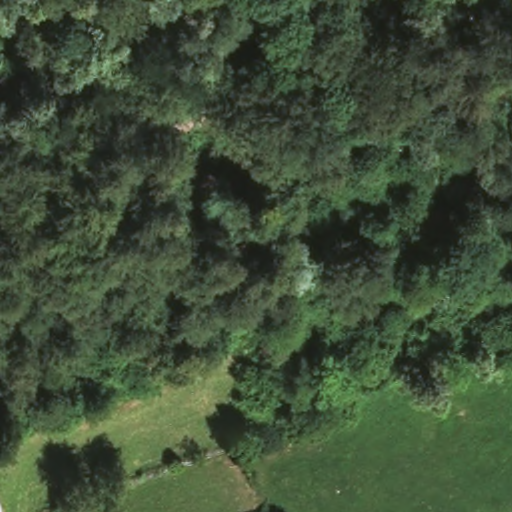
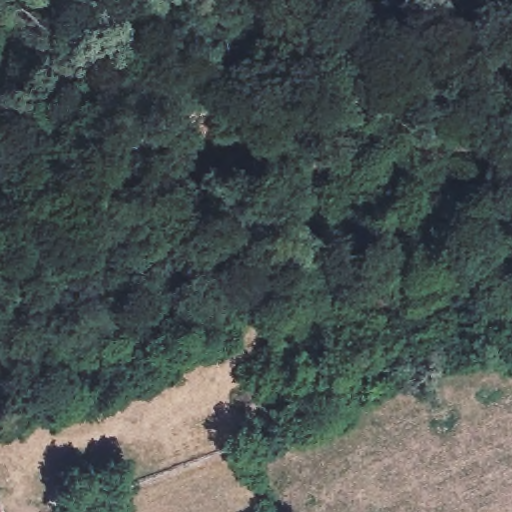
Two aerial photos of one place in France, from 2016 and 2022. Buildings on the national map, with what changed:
[]

